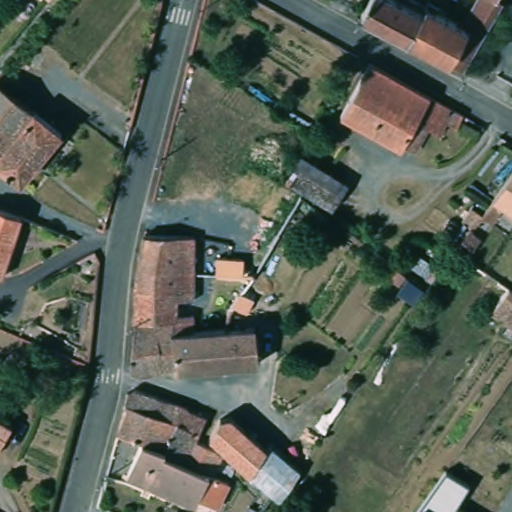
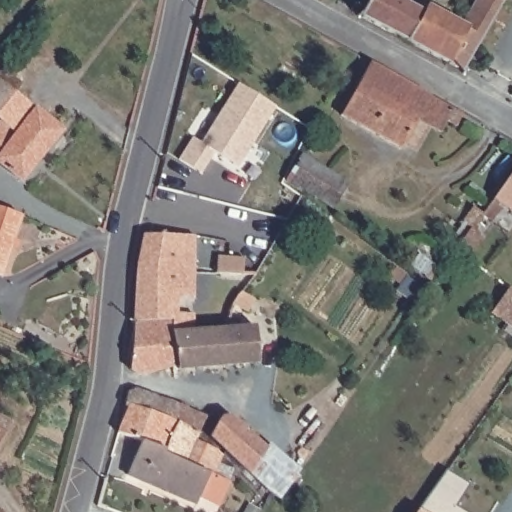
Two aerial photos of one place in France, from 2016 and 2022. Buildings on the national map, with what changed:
unchanged [(427,7),(462,25),(476,0),(502,0),(504,1),(502,4),(489,26),(465,69),(463,71),(362,18),(372,0),(399,0),(423,12),(427,7)]
unchanged [(402,145),(400,149),(341,116),(371,64),(463,115),(456,127),(446,122),(440,134),(428,127),(414,151),(402,145)]
unchanged [(22,84),(14,94),(62,132),(20,183),(0,168),(0,148),(2,149),(13,135),(0,125),(0,72),(4,67),(22,84)]
new [(203,145),(241,86),(278,109),(239,169),(216,154),(202,175),(180,161),(195,139),(203,145)]
unchanged [(301,156),(347,183),(331,209),(286,181),(301,156)]
unchanged [(473,208),(482,214),(489,205),(512,173),(512,213),(503,207),(491,223),(481,215),(472,228),(462,221),(473,208)]
unchanged [(1,276),(0,276),(0,210),(20,216),(1,276)]
unchanged [(480,238),(466,256),(456,249),(471,229),(480,238)]
unchanged [(136,283),(139,267),(145,235),(193,236),(193,331),(177,332),(174,332),(173,322),(135,323),(136,283)]
unchanged [(218,246),(260,249),(255,276),(243,276),(215,274),(218,246)]
unchanged [(221,294),(213,293),(215,274),(243,276),(243,294),(230,309),(226,328),(211,330),(221,294)]
unchanged [(498,336),(497,335),(501,329),(498,327),(488,320),(486,319),(504,293),(512,299),(512,347),(498,336)]
unchanged [(177,332),(193,331),(211,330),(226,328),(230,309),(243,294),(254,300),(239,327),(254,327),(257,364),(178,370),(177,365),(174,332),(177,332)]
unchanged [(135,323),(173,322),(174,332),(177,365),(137,376),(130,371),(134,341),(135,323)]
unchanged [(198,498),(195,505),(127,476),(141,442),(117,434),(130,405),(127,404),(127,393),(134,390),(175,406),(186,409),(207,416),(200,434),(199,434),(197,441),(209,448),(211,450),(223,457),(213,478),(228,485),(217,507),(198,498)]
unchanged [(211,436),(221,417),(222,417),(232,416),(232,418),(266,449),(250,475),(216,443),(211,438),(211,436)]
unchanged [(0,443),(0,418),(11,424),(0,443)]
unchanged [(266,449),(269,445),(301,473),(280,501),(272,495),(250,475),(266,449)]
unchanged [(418,512),(428,497),(436,486),(437,485),(444,475),(446,471),(476,490),(462,511),(463,512),(418,512)]
unchanged [(253,512),(247,512),(248,509),(253,512)]

